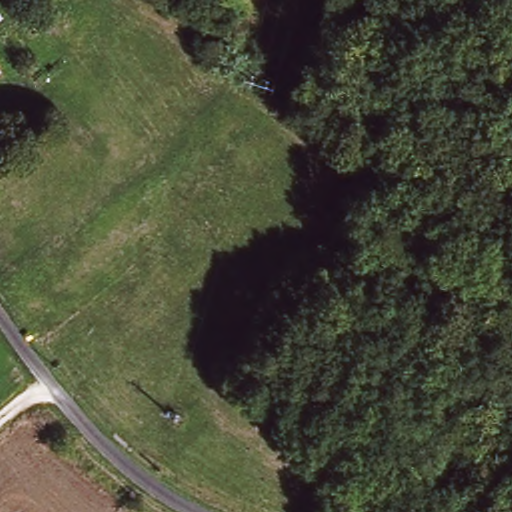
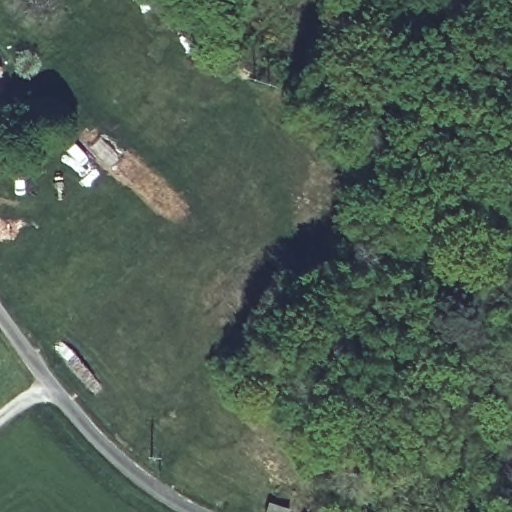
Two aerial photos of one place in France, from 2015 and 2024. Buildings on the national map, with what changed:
unchanged [(0,75),(0,67),(4,72),(0,75)]

